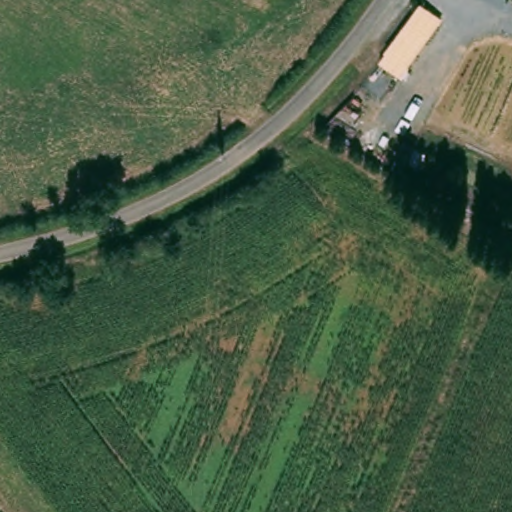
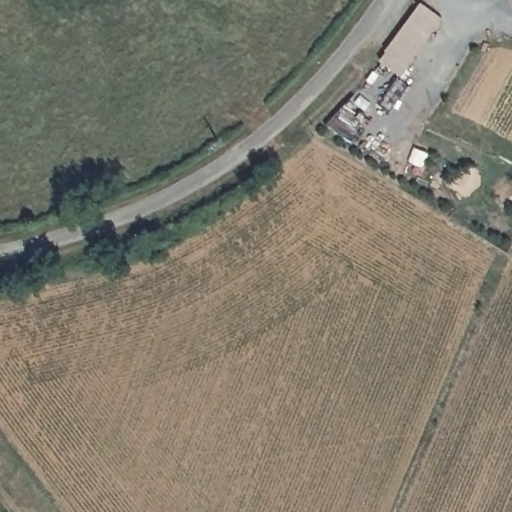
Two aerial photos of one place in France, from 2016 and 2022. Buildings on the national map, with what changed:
unchanged [(412,63),(388,44),(420,0),(444,17),(412,63)]

